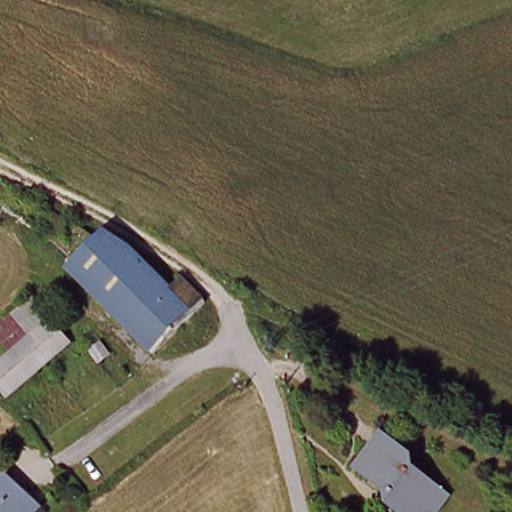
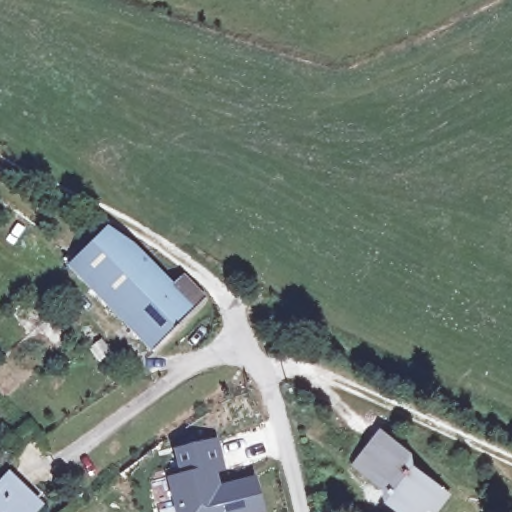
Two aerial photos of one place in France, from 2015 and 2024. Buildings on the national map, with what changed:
unchanged [(173,287),(181,277),(211,297),(167,349),(77,272),(80,265),(60,247),(81,224),(101,240),(110,231),(132,245),(173,287)]
unchanged [(32,334),(19,314),(40,295),(75,339),(36,372),(10,394),(0,381),(0,362),(15,349),(32,334)]
unchanged [(99,339),(118,359),(105,371),(86,352),(99,339)]
unchanged [(443,508),(435,502),(429,512),(409,512),(399,504),(394,486),(388,487),(362,465),(384,431),(409,448),(409,468),(418,464),(444,486),(453,493),(443,508)]
new [(173,481),(184,478),(178,453),(216,444),(222,469),(212,471),(218,491),(254,482),(262,512),(181,512),(173,481)]
unchanged [(8,477),(39,507),(34,512),(0,512),(0,484),(8,477)]

